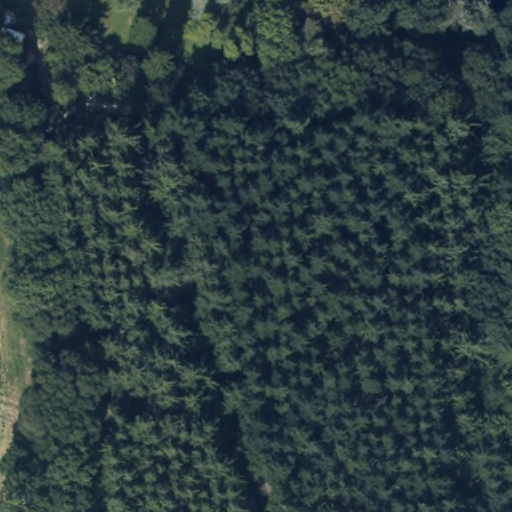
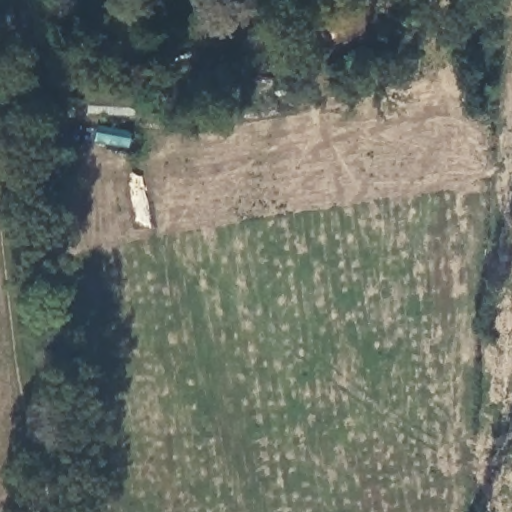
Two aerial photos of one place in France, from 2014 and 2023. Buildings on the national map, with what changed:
unchanged [(27,129),(24,115),(14,74),(34,69),(44,110),(34,112),(38,126),(27,129)]
unchanged [(134,115),(88,114),(88,95),(98,96),(111,97),(134,97),(134,110),(134,115)]

